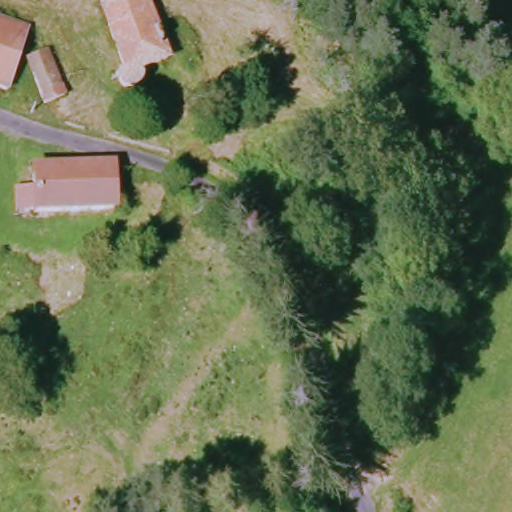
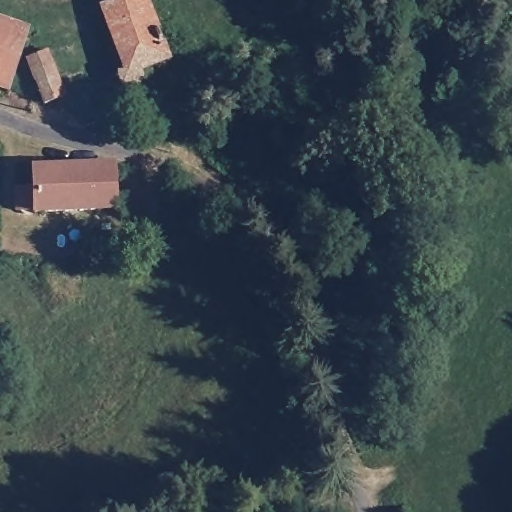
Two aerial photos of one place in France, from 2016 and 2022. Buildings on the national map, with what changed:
unchanged [(161,64),(133,75),(136,86),(129,94),(118,92),(113,80),(123,74),(97,7),(115,0),(137,0),(161,64)]
unchanged [(0,20),(27,29),(19,60),(9,89),(0,86),(0,20)]
unchanged [(63,99),(44,106),(26,57),(43,52),(63,99)]
unchanged [(109,164),(110,209),(33,214),(30,172),(109,164)]

